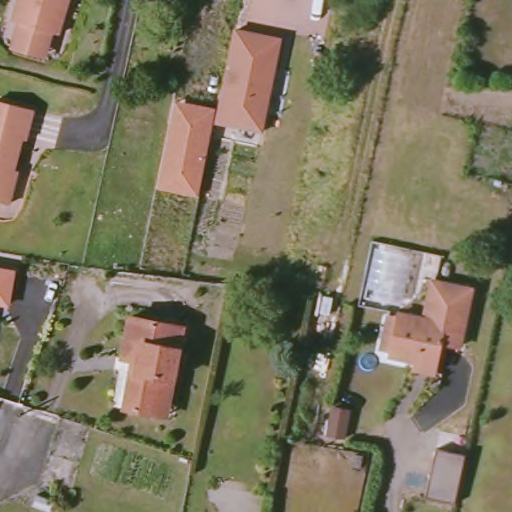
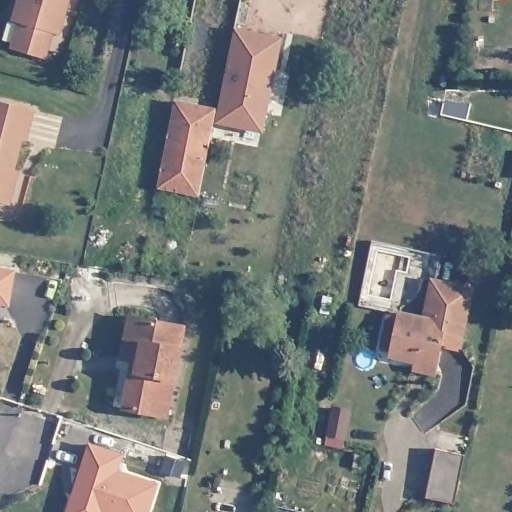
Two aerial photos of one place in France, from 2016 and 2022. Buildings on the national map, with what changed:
unchanged [(58,31),(20,20),(15,19),(20,0),(72,0),(62,33),(58,31)]
unchanged [(20,20),(58,31),(48,61),(12,50),(20,20)]
unchanged [(263,134),(217,125),(237,29),(283,40),(263,134)]
unchanged [(35,109),(27,138),(21,136),(9,179),(13,180),(7,202),(0,201),(0,99),(35,109)]
unchanged [(174,104),(214,112),(200,197),(158,190),(174,104)]
unchanged [(11,308),(0,307),(0,268),(18,270),(11,308)]
unchanged [(442,346),(436,377),(415,374),(417,360),(395,357),(381,350),(389,315),(400,318),(401,310),(424,317),(435,276),(480,287),(464,348),(442,346)]
unchanged [(154,415),(125,410),(133,363),(123,361),(130,319),(186,329),(173,396),(169,418),(154,415)]
new [(124,455),(118,471),(159,484),(149,512),(65,512),(88,442),(124,455)]

